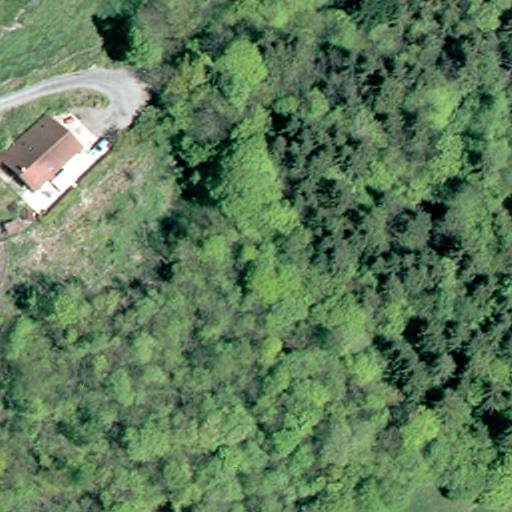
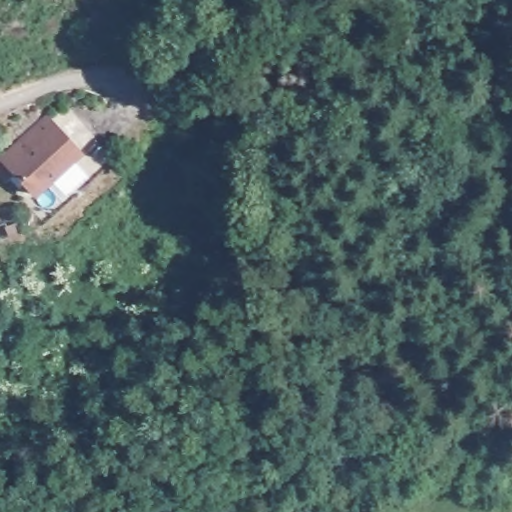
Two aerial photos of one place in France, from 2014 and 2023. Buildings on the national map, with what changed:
unchanged [(22,194),(0,163),(0,148),(50,112),(78,153),(22,194)]

